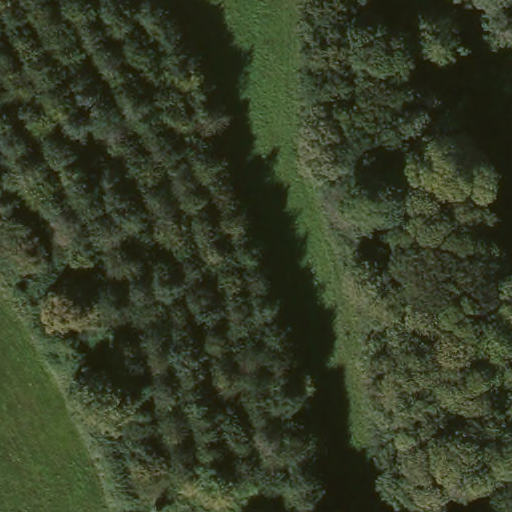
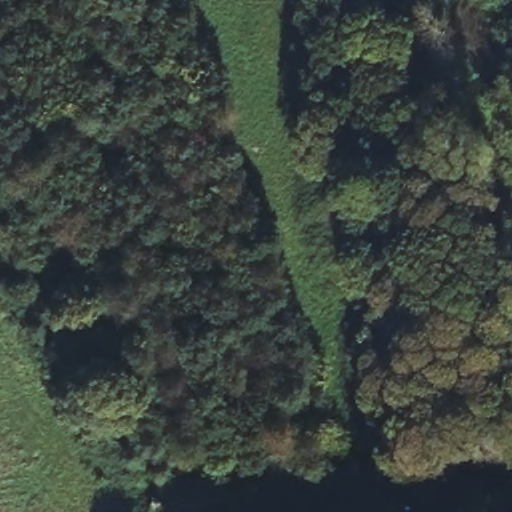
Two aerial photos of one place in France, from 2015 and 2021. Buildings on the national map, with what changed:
unchanged [(507,146),(508,153),(497,155),(496,148),(507,146)]

